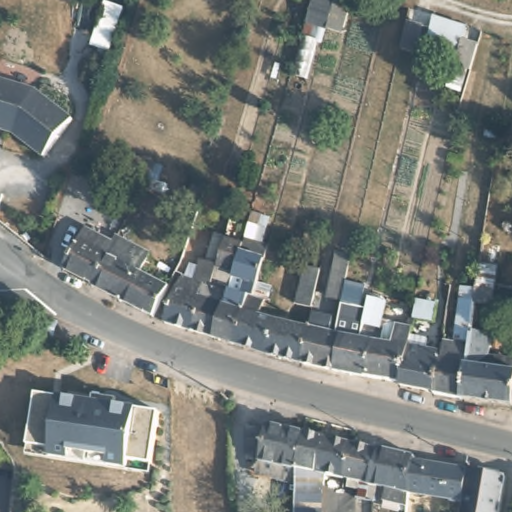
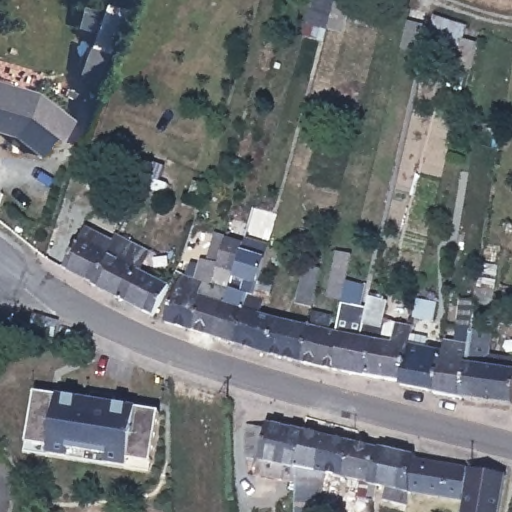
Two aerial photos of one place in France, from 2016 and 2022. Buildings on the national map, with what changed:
unchanged [(308,78),(295,74),(308,22),(315,0),(337,0),(336,1),(352,6),(343,33),(328,28),(325,43),(318,41),(308,78)]
unchanged [(126,8),(112,52),(93,47),(107,3),(126,8)]
unchanged [(430,27),(424,53),(405,49),(411,23),(430,27)]
unchanged [(471,68),(455,63),(460,37),(478,41),(471,68)]
unchanged [(0,126),(0,78),(35,88),(74,119),(42,155),(15,130),(0,126)]
unchanged [(194,187),(205,190),(200,204),(189,200),(194,187)]
unchanged [(247,223),(258,226),(255,242),(266,245),(251,298),(245,295),(232,341),(213,338),(241,243),(247,223)]
unchanged [(86,224),(115,239),(118,234),(150,251),(141,269),(171,284),(152,316),(93,283),(94,281),(66,265),(86,224)]
unchanged [(207,280),(192,330),(166,323),(180,279),(187,273),(190,263),(200,267),(201,261),(205,263),(212,235),(224,238),(211,281),(207,280)]
unchanged [(241,243),(213,338),(192,330),(207,280),(211,281),(224,238),(241,243)]
unchanged [(335,329),(344,290),(330,287),(340,249),(354,254),(350,268),(368,272),(360,303),(367,304),(360,334),(375,337),(366,373),(332,365),(341,330),(335,329)]
unchanged [(318,265),(315,284),(318,284),(313,304),(296,300),(303,263),(318,265)]
unchanged [(458,296),(475,299),(478,280),(483,281),(482,288),(491,289),(488,305),(474,304),(469,331),(459,398),(431,392),(440,349),(443,332),(453,334),(458,296)]
unchanged [(375,337),(360,334),(367,304),(371,283),(390,287),(383,313),(396,315),(395,322),(405,324),(406,319),(412,319),(410,330),(401,381),(366,373),(375,337)]
unchanged [(245,295),(251,298),(261,299),(257,313),(273,315),(265,349),(232,341),(245,295)]
unchanged [(415,296),(435,299),(431,318),(413,314),(415,296)]
unchanged [(307,323),(311,309),(332,314),(330,328),(335,329),(341,330),(332,365),(299,357),(307,323)]
unchanged [(54,335),(33,334),(35,315),(55,318),(54,335)]
unchanged [(273,315),(307,323),(299,357),(265,349),(273,315)]
unchanged [(410,330),(427,334),(425,347),(440,349),(431,392),(400,387),(401,381),(410,330)]
unchanged [(485,354),(512,358),(510,369),(512,369),(512,391),(510,404),(459,398),(469,331),(487,334),(485,354)]
unchanged [(94,394),(117,397),(116,405),(161,412),(153,464),(130,461),(130,468),(110,464),(110,458),(72,452),(71,459),(51,455),(52,449),(30,445),(37,393),(92,401),(94,394)]
unchanged [(258,475),(260,462),(246,459),(247,429),(266,432),(267,426),(302,434),(295,464),(293,483),(258,475)]
unchanged [(351,444),(340,479),(322,475),(321,493),(318,493),(318,512),(292,512),(293,483),(295,464),(302,434),(351,444)]
unchanged [(377,449),(368,484),(367,490),(355,489),(348,488),(349,481),(340,479),(351,444),(377,449)]
unchanged [(415,458),(415,461),(408,493),(407,506),(380,500),(382,487),(372,485),(368,484),(377,449),(415,458)]
unchanged [(463,503),(408,493),(415,461),(467,469),(463,503)]
unchanged [(499,512),(462,512),(463,503),(467,469),(503,475),(499,512)]

